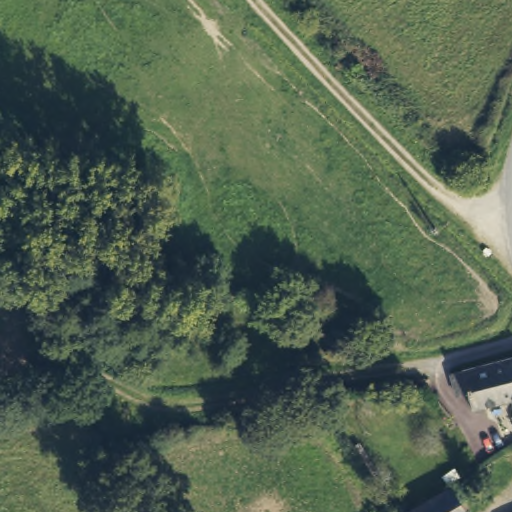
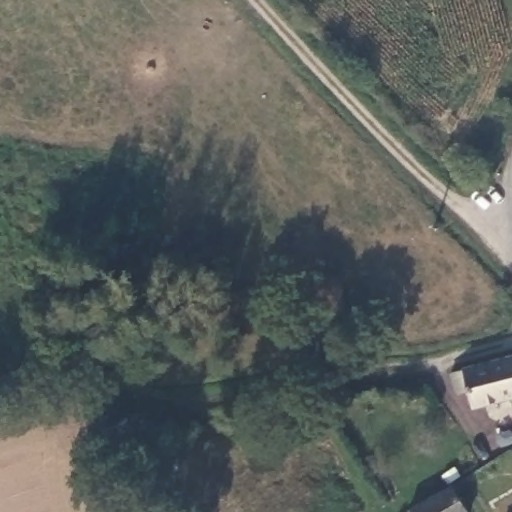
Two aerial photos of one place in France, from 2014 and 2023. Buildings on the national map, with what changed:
unchanged [(468,408),(463,395),(453,399),(447,374),(512,358),(512,407),(510,398),(468,408)]
unchanged [(462,512),(408,512),(405,508),(445,484),(462,512)]

